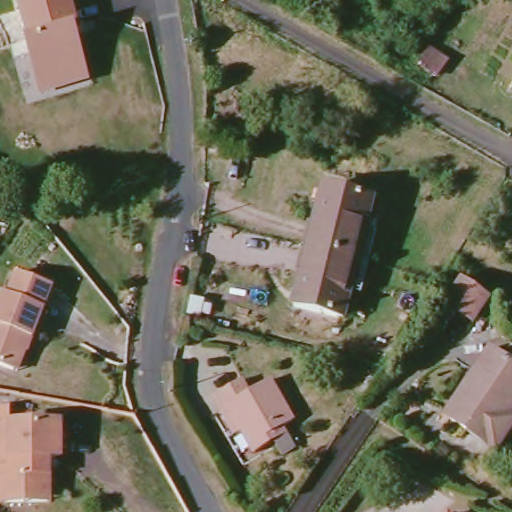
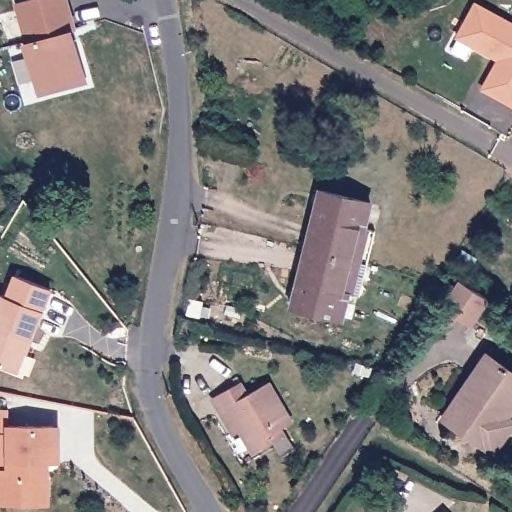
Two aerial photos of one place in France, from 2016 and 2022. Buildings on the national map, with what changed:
unchanged [(16,2),(23,0),(71,0),(78,26),(75,26),(88,84),(39,96),(25,41),(16,2)]
new [(512,105),(482,90),(499,60),(457,37),(477,4),(512,22),(512,105)]
unchanged [(304,241),(322,183),(372,198),(363,226),(374,229),(366,255),(304,241)]
unchanged [(366,255),(355,291),(345,288),(337,314),(286,298),(304,241),(366,255)]
unchanged [(7,295),(15,273),(52,287),(43,309),(33,337),(27,335),(16,367),(0,361),(0,296),(1,293),(7,295)]
unchanged [(472,319),(448,301),(463,278),(489,296),(472,319)]
unchanged [(440,411),(458,386),(462,388),(488,350),(512,368),(512,404),(503,416),(511,421),(497,440),(492,447),(465,427),(450,417),(440,411)]
unchanged [(235,379),(242,390),(263,377),(288,418),(260,435),(265,442),(247,453),(225,417),(220,420),(207,397),(235,379)]
unchanged [(50,460),(38,459),(37,471),(44,471),(42,497),(0,495),(0,408),(6,408),(5,425),(52,427),(50,460)]

